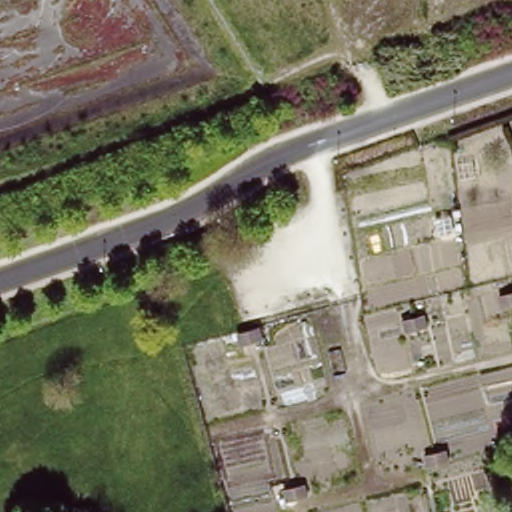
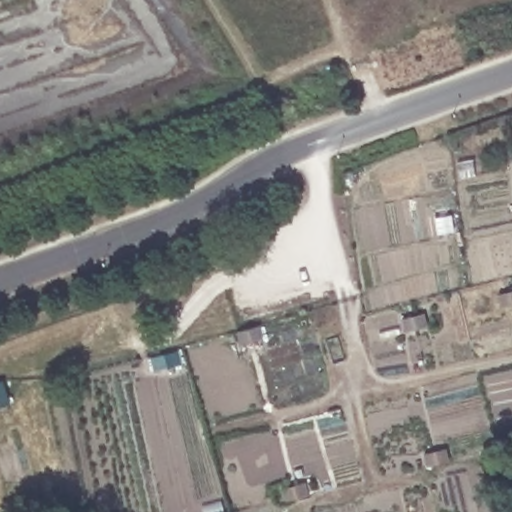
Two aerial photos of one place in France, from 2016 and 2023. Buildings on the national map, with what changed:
unchanged [(512,291),(512,306),(502,309),(499,294),(511,291),(512,291)]
unchanged [(427,310),(431,324),(418,328),(407,331),(403,317),(414,314),(415,313),(427,310)]
unchanged [(259,325),(262,339),(242,345),(238,347),(234,332),(239,330),(246,329),(259,325)]
unchanged [(428,466),(427,466),(422,452),(424,451),(447,445),(451,459),(439,463),(428,466)]
unchanged [(290,501),(285,502),(282,488),(285,487),(306,481),(310,496),(297,499),(292,500),(290,501)]

